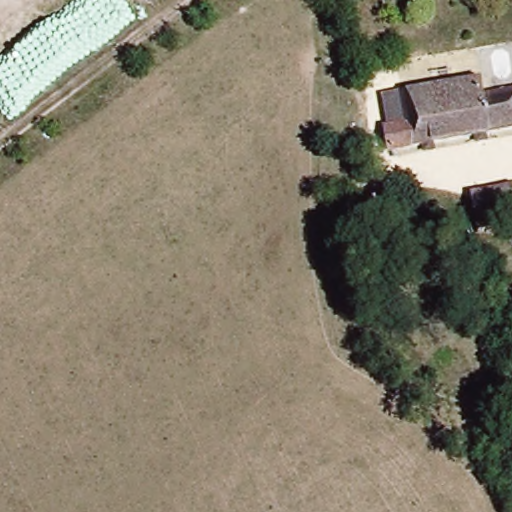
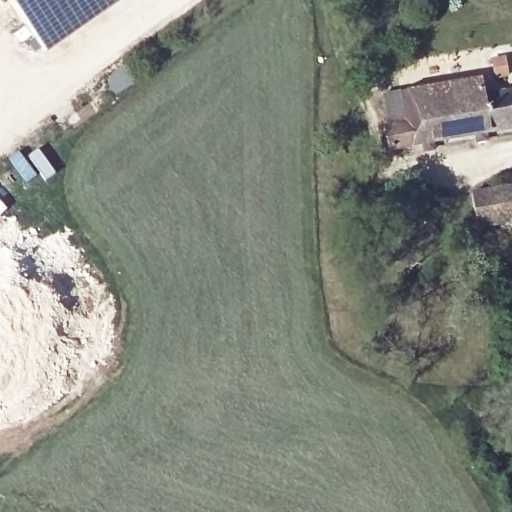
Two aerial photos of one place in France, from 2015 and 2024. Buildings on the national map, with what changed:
new [(43,50),(8,0),(115,0),(43,50)]
unchanged [(489,92),(512,88),(512,130),(387,150),(384,125),(379,91),(405,87),(485,73),(489,92)]
unchanged [(468,195),(512,188),(512,224),(473,230),(468,195)]

